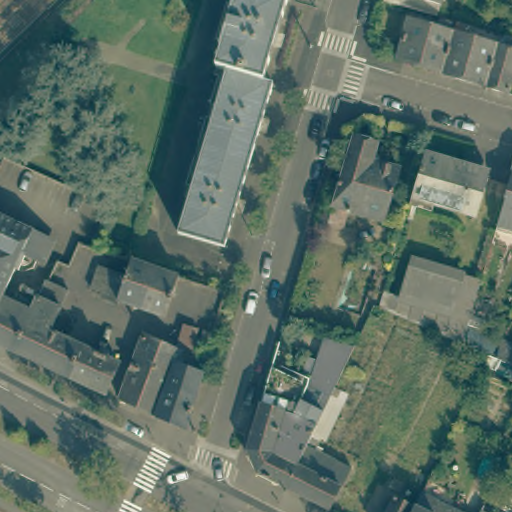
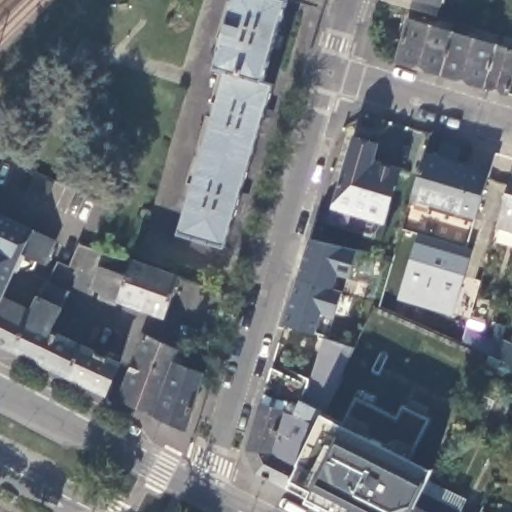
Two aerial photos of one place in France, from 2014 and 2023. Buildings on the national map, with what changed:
unchanged [(227,71),(216,68),(221,49),(220,49),(234,4),(236,4),(237,0),(290,0),(265,83),(274,86),(225,248),(179,233),(227,71)]
unchanged [(398,0),(441,0),(437,11),(398,0)]
unchanged [(397,57),(410,16),(438,24),(440,17),(456,21),(454,28),(442,70),(397,57)]
unchanged [(442,70),(454,28),(458,29),(461,21),(472,25),(470,33),(498,41),(486,84),(442,70)]
unchanged [(498,41),(501,42),(505,31),(512,33),(512,74),(507,90),(486,84),(498,41)]
unchanged [(328,220),(354,134),(377,141),(372,158),(399,166),(388,200),(393,202),(392,207),(386,206),(382,220),(347,209),(342,224),(328,220)]
unchanged [(490,169),(475,215),(412,195),(425,149),(490,169)]
unchanged [(505,206),(512,181),(512,236),(497,232),(505,206)]
unchanged [(40,236),(47,239),(55,242),(42,266),(35,263),(25,258),(22,259),(14,274),(11,272),(0,295),(0,217),(40,236)]
unchanged [(489,347),(462,335),(424,319),(396,307),(412,251),(481,271),(466,322),(495,331),(489,347)]
unchanged [(163,273),(175,277),(161,318),(115,301),(113,306),(96,299),(97,294),(86,290),(95,268),(121,277),(127,261),(134,263),(163,273)]
unchanged [(29,359),(0,344),(0,299),(30,311),(35,298),(44,281),(45,282),(65,293),(57,310),(46,331),(79,347),(65,377),(30,360),(29,359)]
unchanged [(140,329),(171,344),(180,320),(193,325),(185,349),(175,346),(172,355),(150,412),(115,396),(140,329)]
unchanged [(205,344),(196,341),(200,328),(209,331),(205,344)]
unchanged [(512,356),(496,350),(502,330),(512,334),(512,356)]
unchanged [(309,382),(325,335),(353,345),(333,386),(324,406),(286,484),(258,469),(246,447),(271,364),(309,382)]
unchanged [(65,377),(79,347),(93,354),(96,348),(104,352),(100,358),(115,365),(100,394),(65,377)]
unchanged [(180,427),(150,412),(172,355),(179,357),(176,362),(198,368),(180,427)]
new [(286,484),(321,411),(340,423),(356,397),(396,419),(400,412),(426,426),(412,454),(437,465),(420,504),(417,509),(424,512),(338,512),(286,484)]
demolished [(324,406),(338,413),(325,439),(321,436),(317,444),(321,446),(318,452),(334,460),(335,456),(348,463),(347,465),(349,466),(330,506),(286,484),(324,406)]
demolished [(458,512),(425,512),(431,499),(458,512)]
new [(458,512),(425,512),(431,499),(458,512)]
demolished [(405,503),(413,507),(415,502),(420,504),(417,509),(424,512),(400,512),(405,503)]

